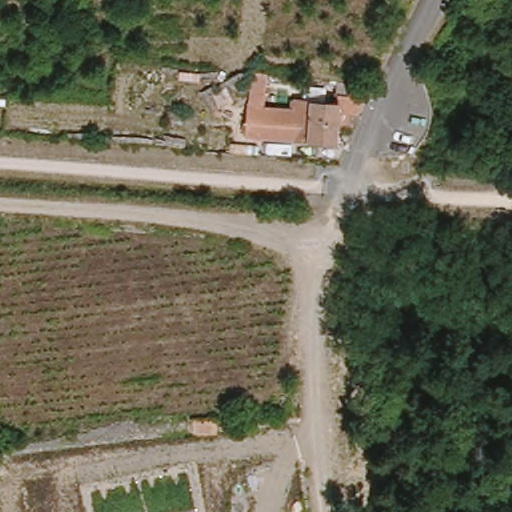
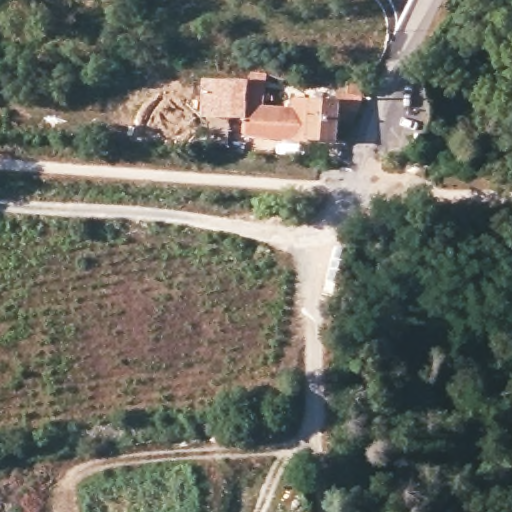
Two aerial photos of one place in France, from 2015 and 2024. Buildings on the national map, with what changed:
unchanged [(290,133),(247,130),(251,71),(272,74),(270,99),(292,101),(290,133)]
new [(245,114),(200,112),(201,82),(246,84),(245,114)]
unchanged [(350,83),(371,84),(366,98),(363,107),(347,107),(348,98),(350,83)]
unchanged [(290,133),(292,101),(338,104),(335,144),(290,142),(290,133)]
unchanged [(191,437),(190,424),(190,420),(216,418),(216,420),(217,435),(191,437)]

